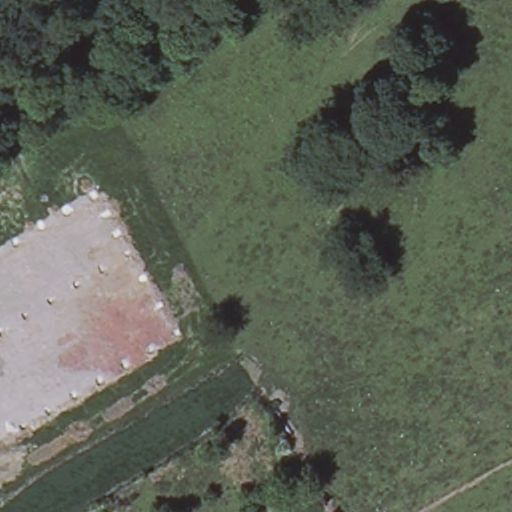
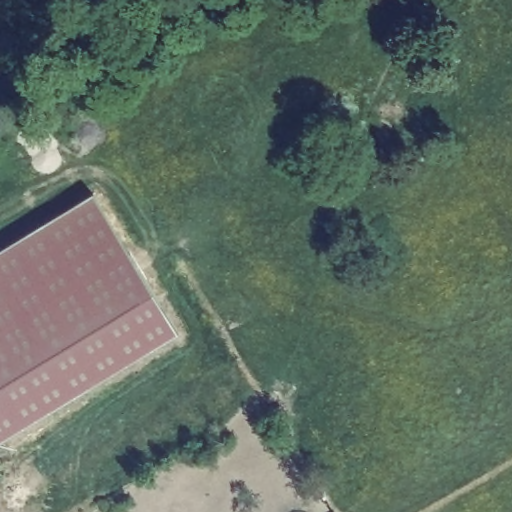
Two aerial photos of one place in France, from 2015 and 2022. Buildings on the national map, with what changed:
new [(179,333),(0,442),(0,251),(94,194),(179,333)]

